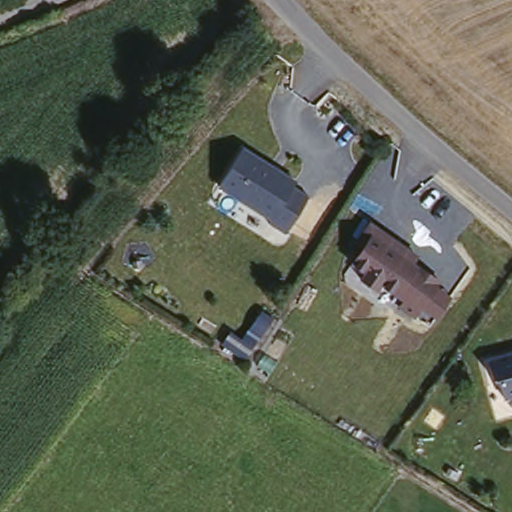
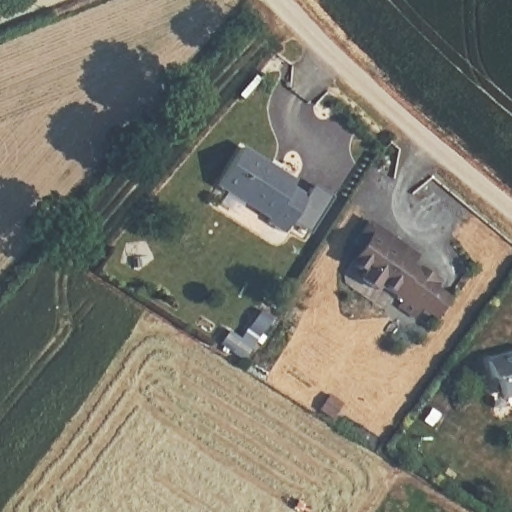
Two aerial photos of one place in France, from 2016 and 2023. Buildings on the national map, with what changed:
unchanged [(293,178),(289,183),(309,195),(316,183),(337,196),(312,232),(293,223),(289,230),(271,218),(274,213),(223,182),(244,147),(293,178)]
unchanged [(419,254),(414,262),(444,282),(422,310),(414,321),(396,309),(401,301),(380,286),(375,291),(357,278),(361,272),(348,263),(352,258),(344,249),(367,218),(419,254)]
unchanged [(512,349),(512,394),(506,396),(492,355),(512,349)]

